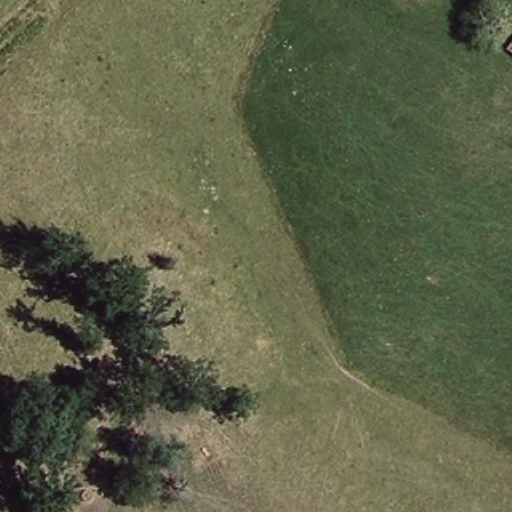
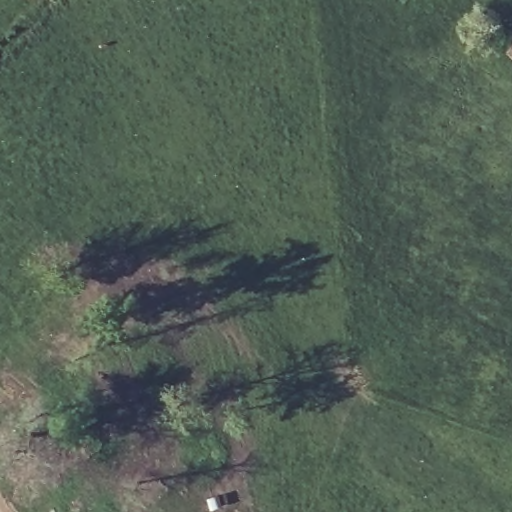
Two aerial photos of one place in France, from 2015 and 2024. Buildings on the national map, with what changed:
unchanged [(512,45),(512,65),(502,56),(512,45)]

